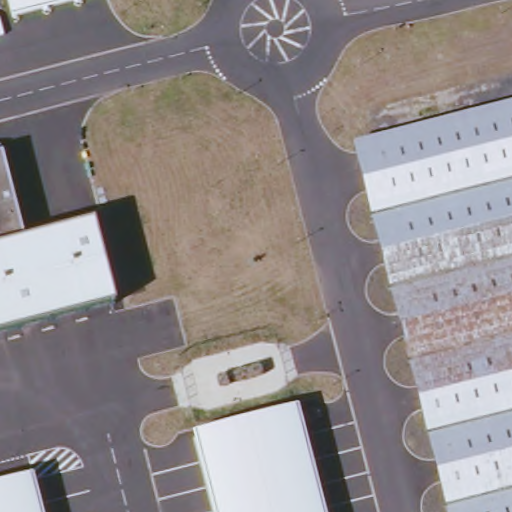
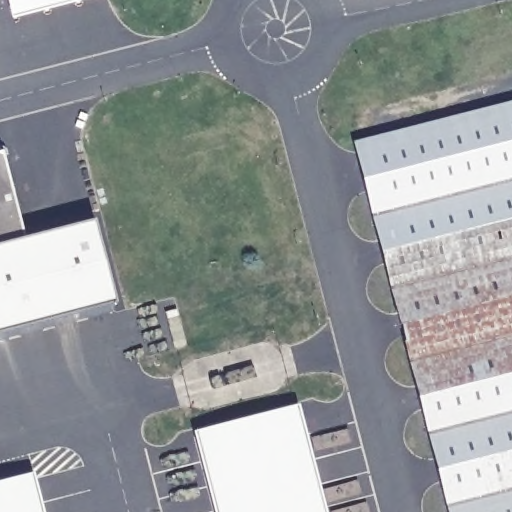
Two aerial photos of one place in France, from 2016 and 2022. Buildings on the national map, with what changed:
unchanged [(9,0),(92,0),(15,21),(9,0)]
unchanged [(356,155),(512,114),(512,512),(449,512),(356,155)]
unchanged [(4,153),(29,240),(94,224),(115,304),(0,334),(0,154),(4,153)]
unchanged [(329,512),(215,512),(194,434),(301,406),(329,512)]
unchanged [(47,512),(0,512),(0,485),(37,475),(47,512)]

